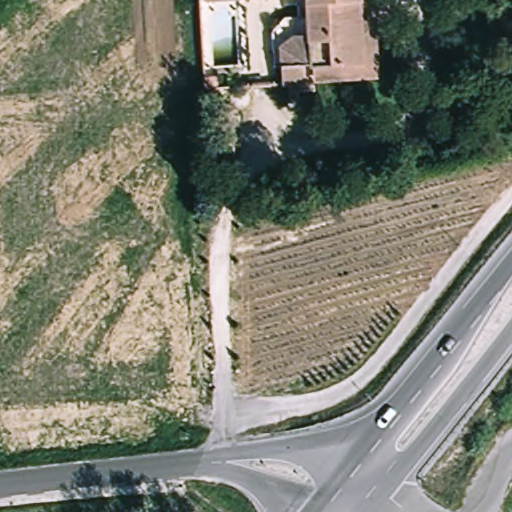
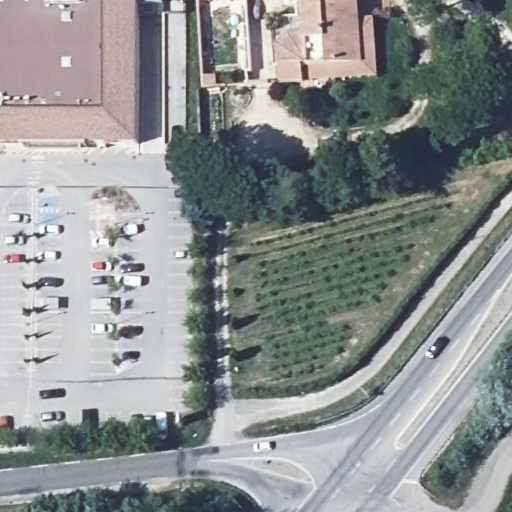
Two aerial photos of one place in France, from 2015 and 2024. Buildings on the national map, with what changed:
new [(0,147),(0,0),(137,0),(137,148),(0,147)]
unchanged [(365,65),(313,67),(305,67),(305,83),(282,84),(280,37),(310,36),(309,0),(362,0),(363,21),(365,65)]
unchanged [(378,21),(380,79),(313,82),(313,67),(365,65),(363,21),(378,21)]
new [(60,303),(60,314),(40,315),(40,304),(60,303)]
new [(113,305),(113,316),(93,316),(93,305),(113,305)]

